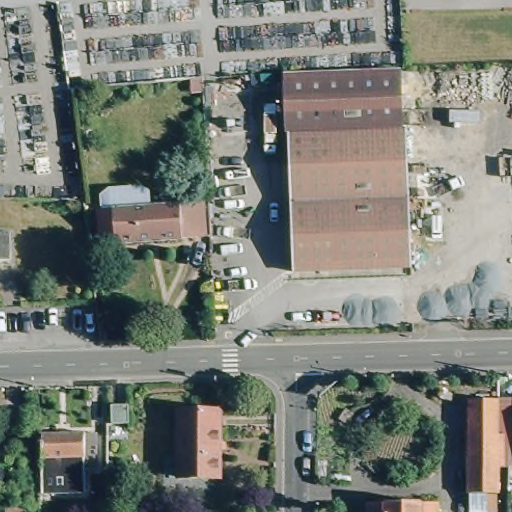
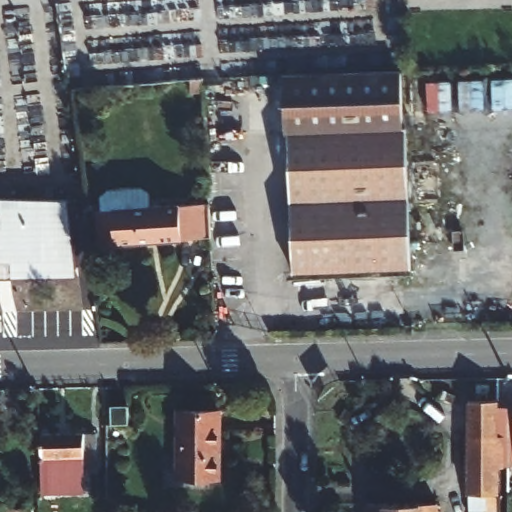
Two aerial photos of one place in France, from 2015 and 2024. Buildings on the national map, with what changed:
unchanged [(291,274),(286,131),(281,130),(279,74),(394,68),(398,125),(404,125),(409,269),(291,274)]
new [(9,248),(9,233),(0,233),(0,200),(67,204),(78,277),(10,278),(9,262),(9,248)]
unchanged [(189,201),(190,235),(97,238),(96,204),(189,201)]
unchanged [(9,233),(9,262),(0,262),(0,233),(9,233)]
unchanged [(512,400),(512,462),(506,462),(506,469),(501,470),(501,494),(500,512),(468,511),(469,494),(468,400),(499,400),(512,400)]
unchanged [(129,427),(110,427),(110,404),(129,404),(129,427)]
unchanged [(221,413),(219,479),(177,479),(177,412),(221,413)]
unchanged [(41,435),(97,435),(97,469),(83,469),(84,498),(40,497),(41,435)]
unchanged [(366,500),(434,502),(434,512),(365,512),(366,500)]
unchanged [(26,509),(26,512),(5,512),(5,510),(26,509)]

